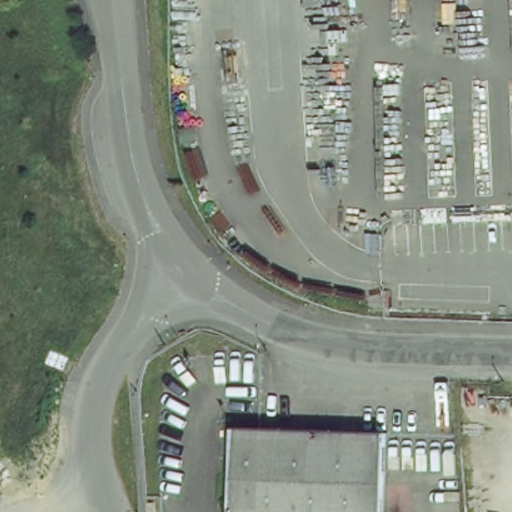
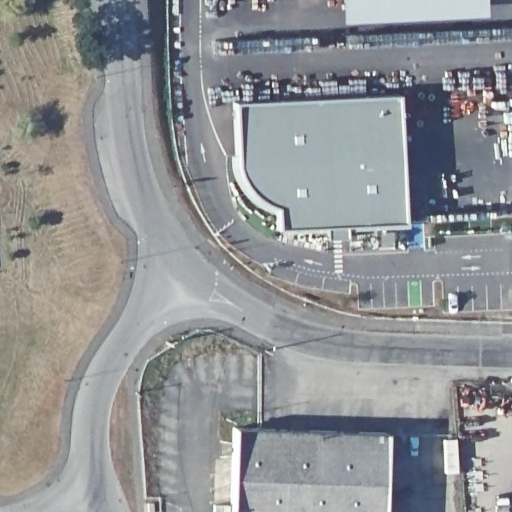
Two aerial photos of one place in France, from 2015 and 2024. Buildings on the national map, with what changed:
new [(339,24),(337,0),(483,0),(484,16),(339,24)]
new [(233,163),(233,100),(356,93),(400,93),(409,228),(346,230),(347,238),(329,239),(328,229),(276,231),(274,212),(268,212),(259,208),(245,196),(234,180),(231,163),(233,163)]
unchanged [(384,437),(379,512),(230,512),(238,429),(384,437)]

